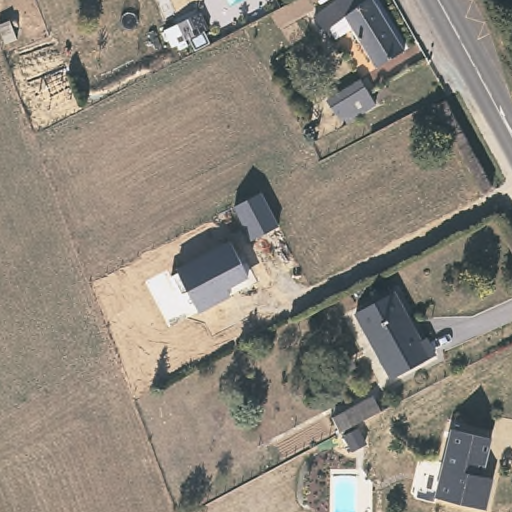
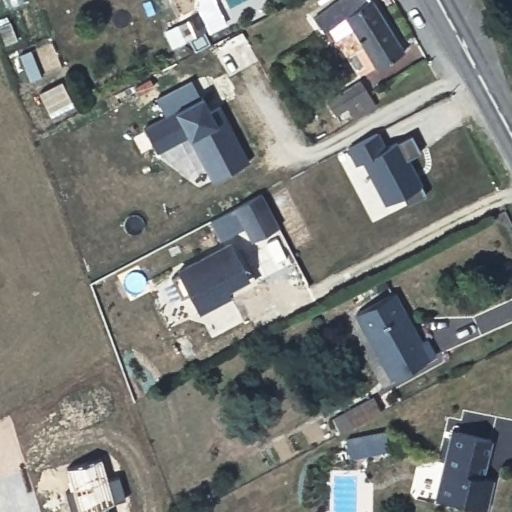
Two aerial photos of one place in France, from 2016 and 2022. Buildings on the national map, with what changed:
unchanged [(330,22),(322,10),(340,0),(375,0),(373,2),(330,22)]
unchanged [(345,22),(373,2),(398,56),(370,73),(345,22)]
unchanged [(177,31),(195,22),(199,19),(208,35),(203,37),(185,46),(177,31)]
unchanged [(340,117),(330,101),(347,92),(361,86),(369,102),(359,107),(340,117)]
new [(199,94),(206,108),(216,103),(244,159),(207,178),(184,132),(153,149),(140,124),(199,94)]
new [(407,203),(404,194),(386,203),(364,159),(355,163),(348,147),(378,131),(388,145),(396,141),(412,133),(421,150),(409,156),(423,185),(420,186),(425,194),(407,203)]
unchanged [(261,194),(278,226),(253,237),(234,207),(261,194)]
unchanged [(179,270),(230,242),(256,283),(200,314),(179,270)]
unchanged [(423,350),(429,347),(436,362),(394,386),(357,318),(395,298),(423,350)]
unchanged [(345,410),(373,396),(382,411),(353,426),(350,427),(342,432),(334,416),(345,410)]
unchanged [(496,432),(486,469),(496,472),(488,502),(439,489),(457,422),(496,432)]

